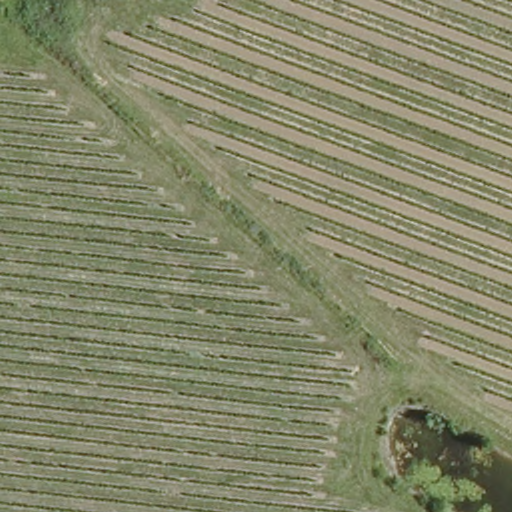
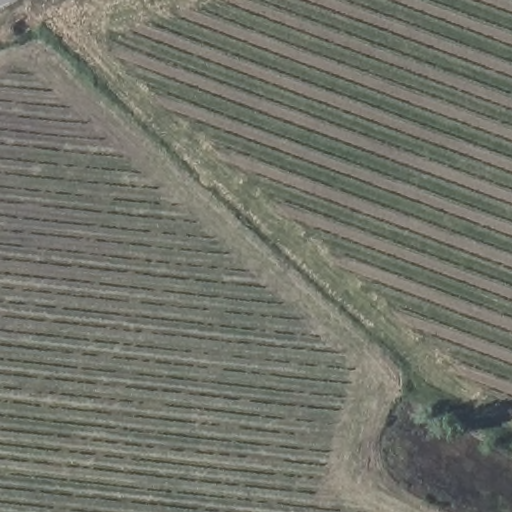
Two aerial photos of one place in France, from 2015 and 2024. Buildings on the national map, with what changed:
[]

